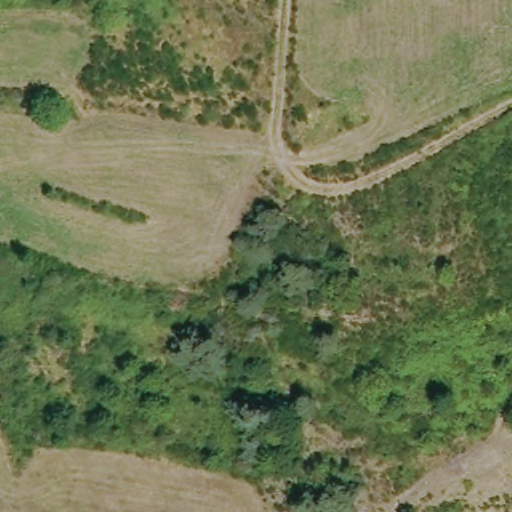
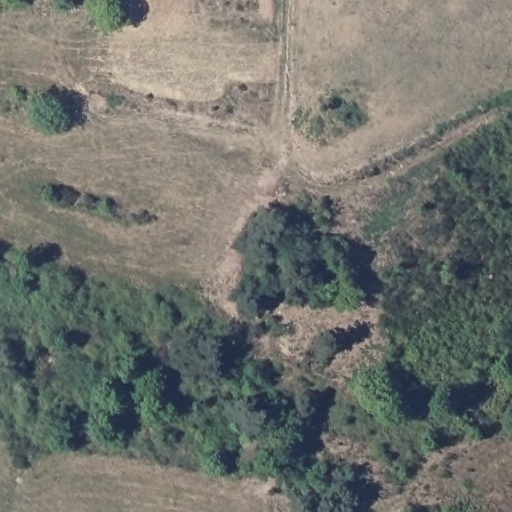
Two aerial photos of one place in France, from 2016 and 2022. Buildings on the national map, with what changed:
[]

